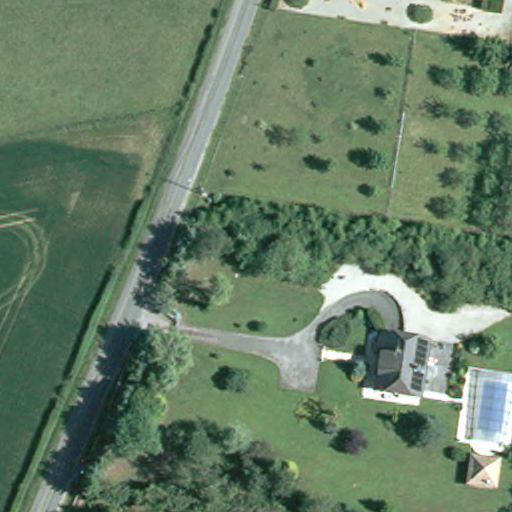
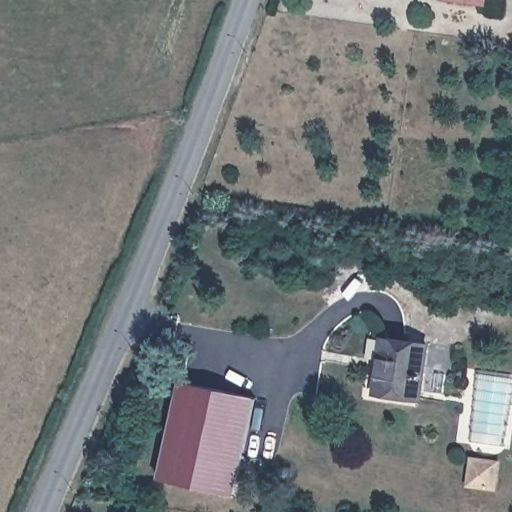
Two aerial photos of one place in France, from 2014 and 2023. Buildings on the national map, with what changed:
unchanged [(420,399),(376,393),(383,335),(428,341),(420,399)]
new [(236,496),(160,479),(183,381),(258,398),(236,496)]
unchanged [(501,462),(497,489),(470,485),(474,458),(501,462)]

